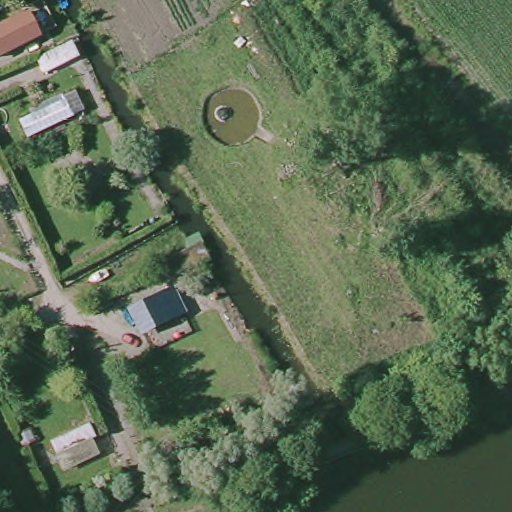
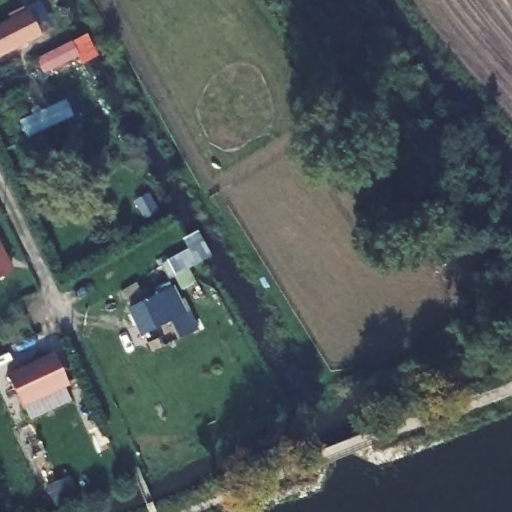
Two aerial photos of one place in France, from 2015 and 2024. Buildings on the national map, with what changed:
unchanged [(40,37),(0,57),(0,23),(27,9),(40,37)]
unchanged [(37,59),(70,42),(77,56),(44,73),(37,59)]
new [(15,270),(0,279),(0,242),(15,270)]
unchanged [(198,262),(174,275),(167,261),(191,248),(198,262)]
unchanged [(184,314),(170,320),(168,317),(141,330),(130,309),(171,289),(184,314)]
new [(54,353),(68,385),(22,406),(8,374),(54,353)]
new [(17,429),(29,423),(37,440),(25,446),(17,429)]

